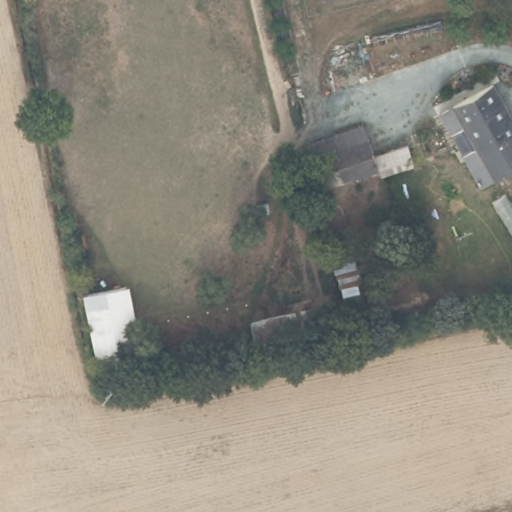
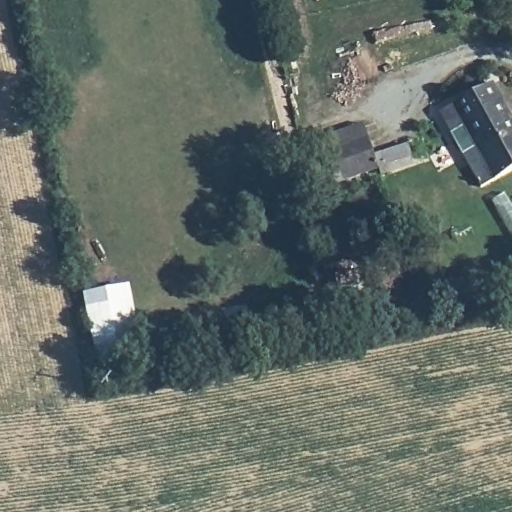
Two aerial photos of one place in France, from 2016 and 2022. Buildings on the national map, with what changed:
unchanged [(512,129),(512,171),(479,191),(435,118),(487,87),(512,129)]
unchanged [(307,149),(368,135),(372,150),(407,143),(410,156),(376,164),(314,180),(307,149)]
unchanged [(135,282),(150,364),(100,375),(86,291),(135,282)]

